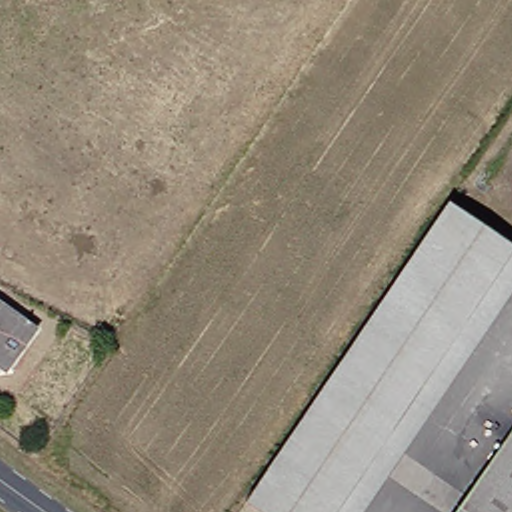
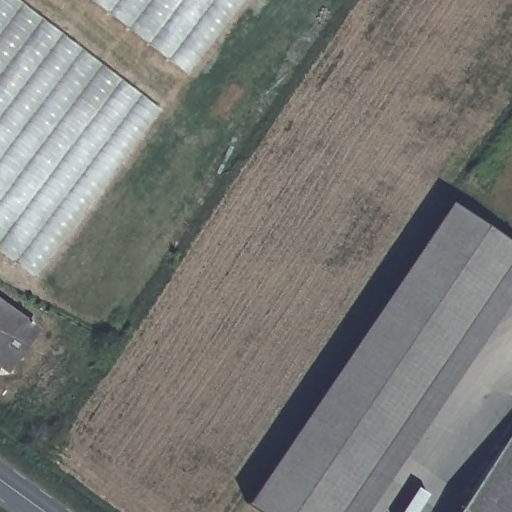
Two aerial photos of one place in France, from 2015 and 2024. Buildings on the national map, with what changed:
new [(158,110),(32,274),(0,250),(0,0),(16,0),(158,110)]
new [(187,73),(92,0),(243,0),(187,73)]
unchanged [(388,316),(473,194),(512,224),(512,287),(354,512),(282,512),(272,504),(262,497),(388,316)]
unchanged [(34,333),(1,373),(0,372),(0,303),(34,333)]
unchanged [(512,512),(453,512),(512,431),(512,512)]

